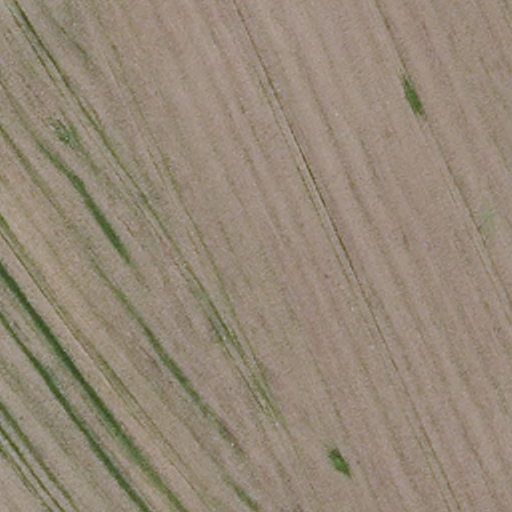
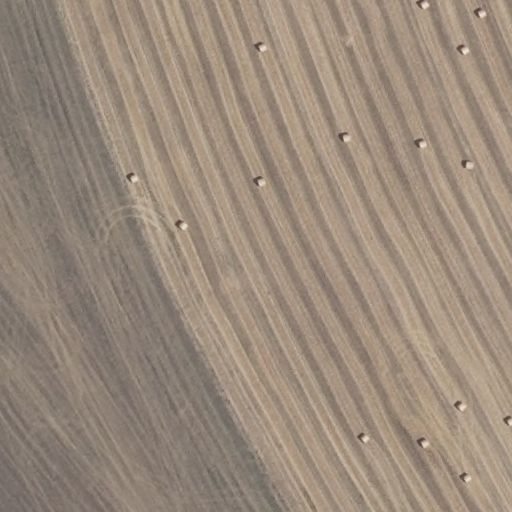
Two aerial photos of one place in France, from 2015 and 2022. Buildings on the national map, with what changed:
[]

